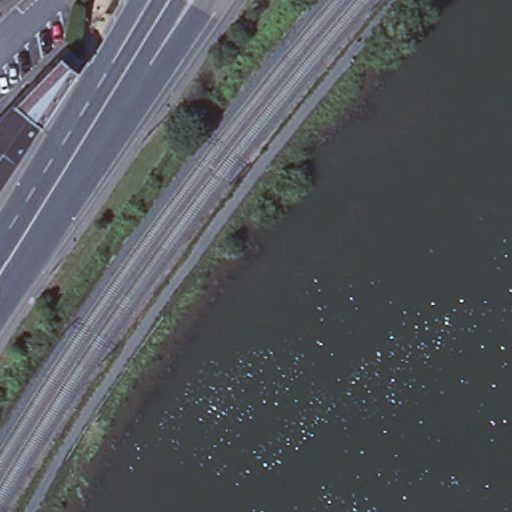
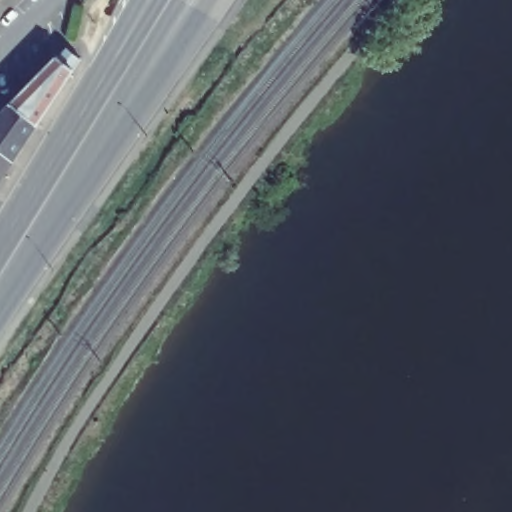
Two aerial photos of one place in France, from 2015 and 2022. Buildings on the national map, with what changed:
unchanged [(67,49),(81,60),(75,70),(39,124),(15,103),(59,56),(67,49)]
unchanged [(39,124),(15,161),(0,150),(0,120),(15,103),(39,124)]
unchanged [(0,184),(0,150),(15,161),(0,184)]

